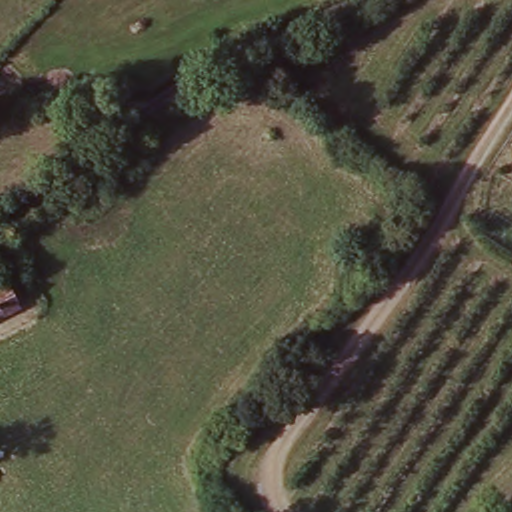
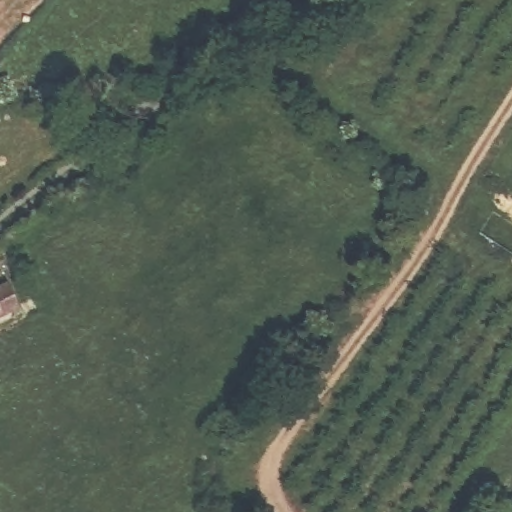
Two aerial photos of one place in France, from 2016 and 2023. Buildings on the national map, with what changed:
unchanged [(9,288),(18,313),(0,321),(0,292),(9,288)]

